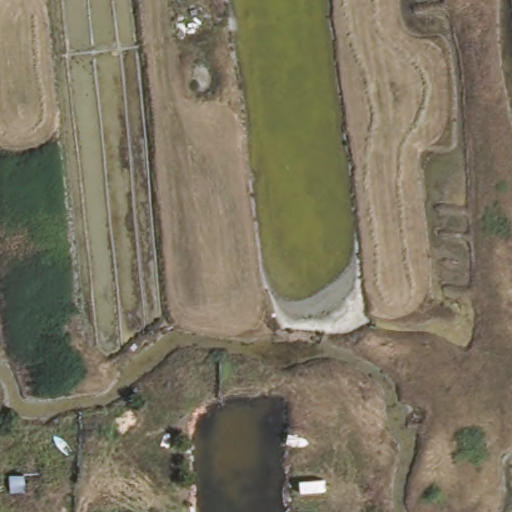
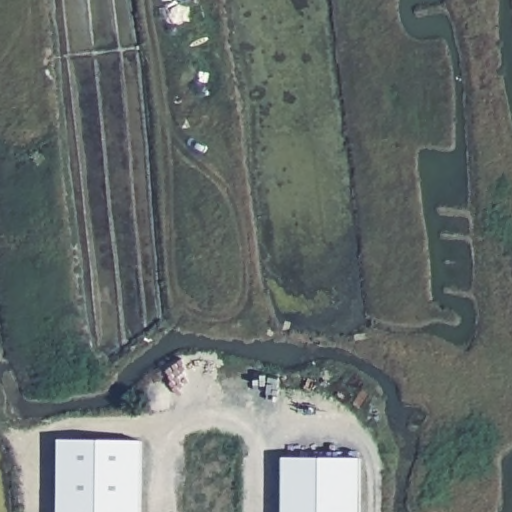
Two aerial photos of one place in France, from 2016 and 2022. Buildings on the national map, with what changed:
new [(55,433),(135,435),(134,512),(54,512),(55,433)]
new [(279,451),(354,452),(354,512),(278,512),(279,451)]

